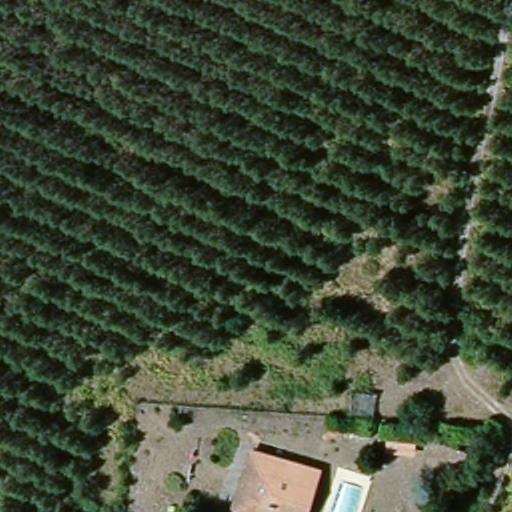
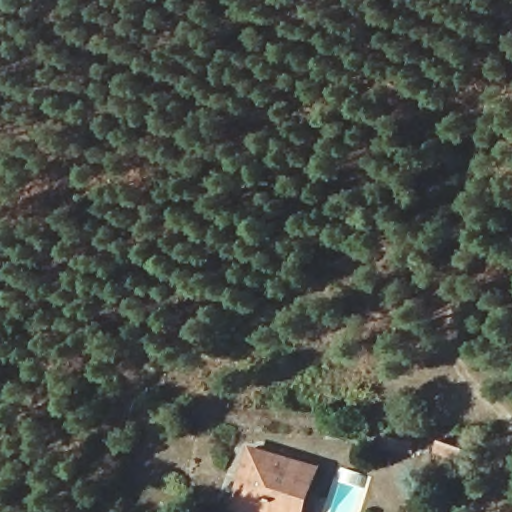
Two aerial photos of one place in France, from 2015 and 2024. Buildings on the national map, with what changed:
unchanged [(163,430),(167,409),(181,412),(178,433),(163,430)]
unchanged [(255,441),(303,460),(286,512),(255,512),(234,504),(255,441)]
unchanged [(306,512),(286,512),(303,460),(322,466),(306,512)]

